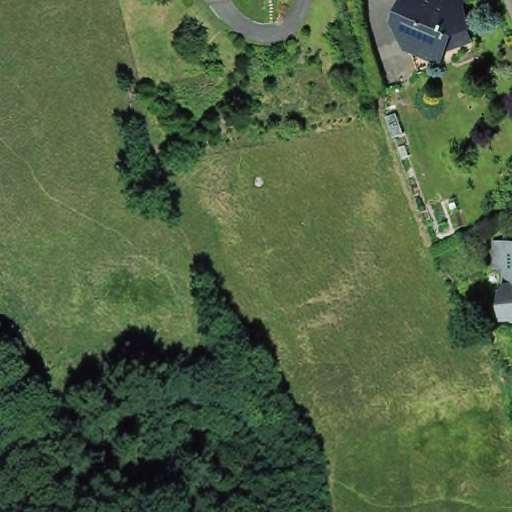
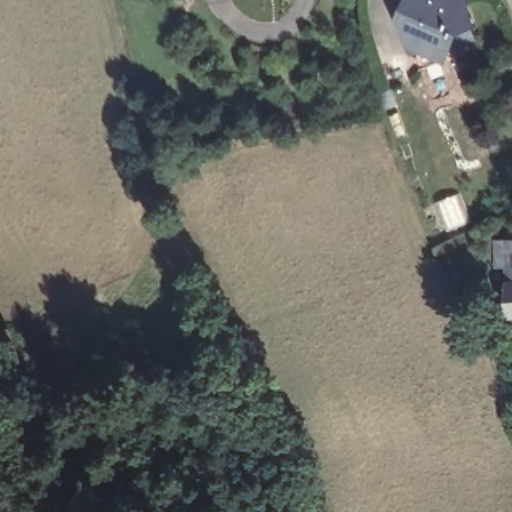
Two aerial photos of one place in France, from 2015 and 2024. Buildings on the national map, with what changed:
unchanged [(454,24),(449,38),(432,31),(413,38),(399,5),(401,0),(462,0),(469,19),(454,24)]
unchanged [(478,41),(422,61),(413,38),(432,31),(449,38),(454,24),(469,19),(478,41)]
unchanged [(504,243),(512,243),(512,272),(507,272),(504,243)]
unchanged [(505,288),(512,288),(512,317),(505,316),(505,288)]

